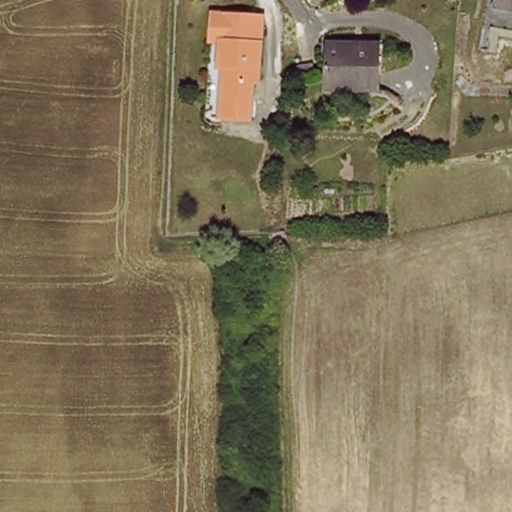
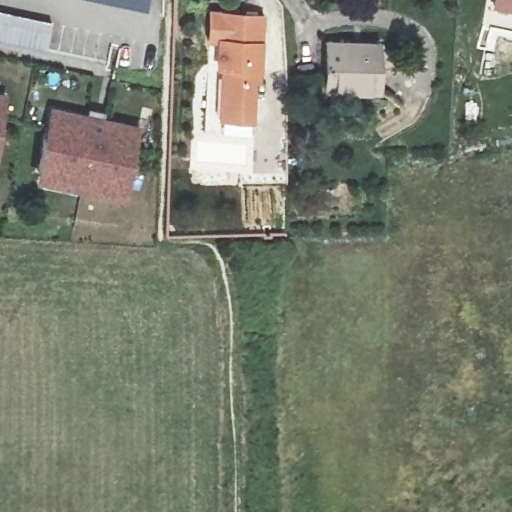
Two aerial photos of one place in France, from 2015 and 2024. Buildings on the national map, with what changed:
new [(147,10),(97,0),(149,0),(147,10)]
unchanged [(512,16),(484,8),(486,0),(512,0),(512,16)]
new [(52,22),(46,50),(0,41),(0,11),(52,22)]
unchanged [(264,17),(261,81),(256,81),(255,123),(225,121),(226,80),(230,80),(231,70),(219,70),(221,44),(210,44),(211,16),(264,17)]
unchanged [(381,45),(373,92),(320,82),(328,36),(381,45)]
new [(8,103),(0,149),(0,102),(8,103)]
new [(43,172),(57,109),(92,116),(94,109),(110,113),(108,120),(144,128),(130,191),(97,184),(95,195),(67,190),(70,178),(43,172)]

